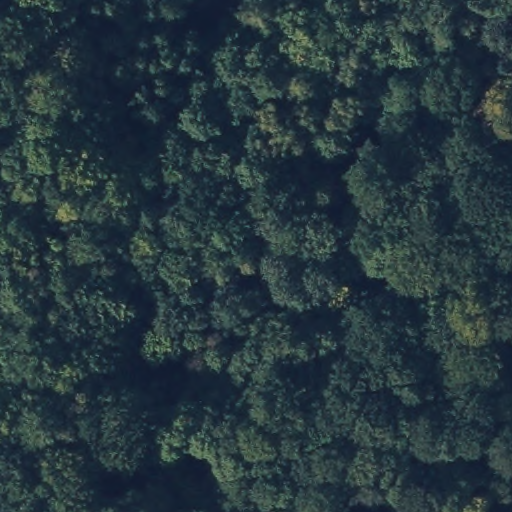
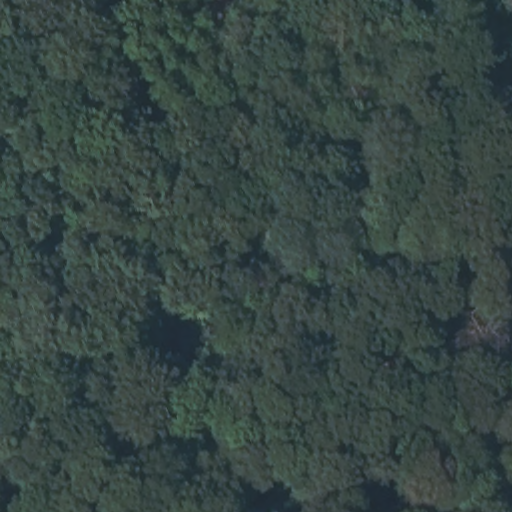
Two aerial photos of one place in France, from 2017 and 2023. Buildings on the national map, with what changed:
unchanged [(207,1),(208,0),(238,0),(240,2),(220,17),(207,1)]

